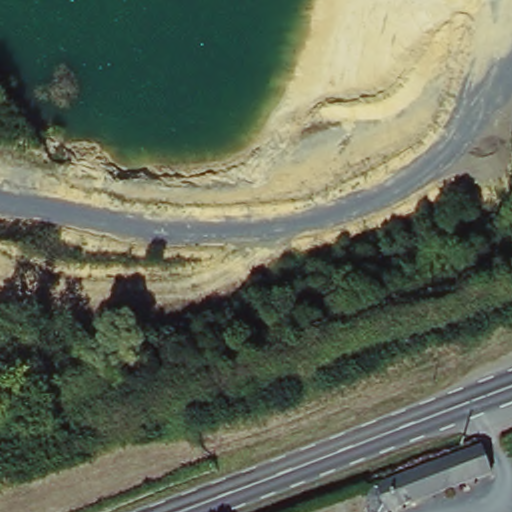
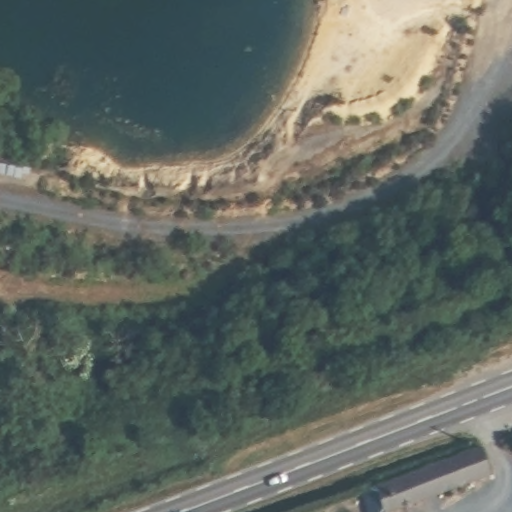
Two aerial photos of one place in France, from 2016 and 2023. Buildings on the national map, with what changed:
unchanged [(465,456),(480,450),(491,480),(474,486),(401,512),(365,512),(364,495),(465,456)]

